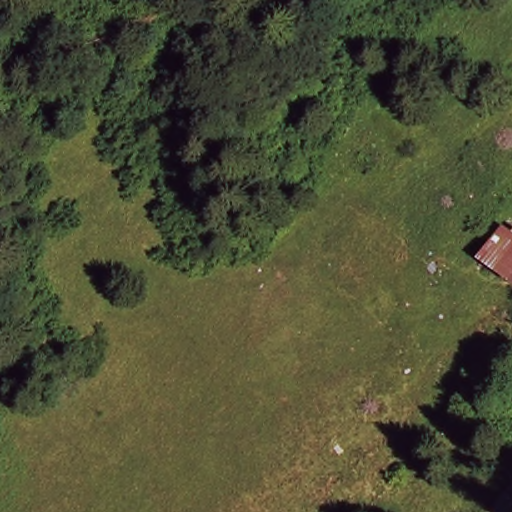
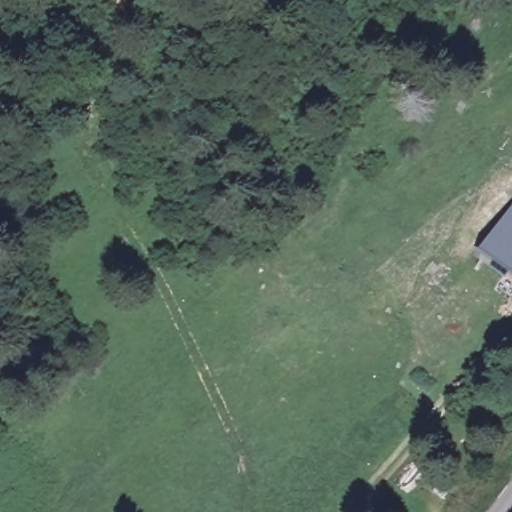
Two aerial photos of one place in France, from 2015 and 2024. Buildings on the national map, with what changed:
unchanged [(497,221),(512,230),(512,269),(480,250),(497,221)]

